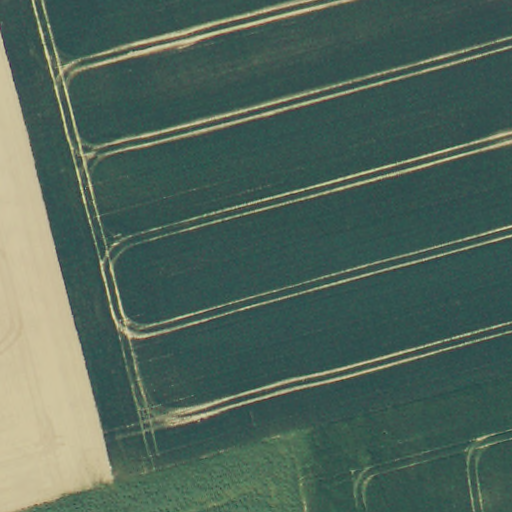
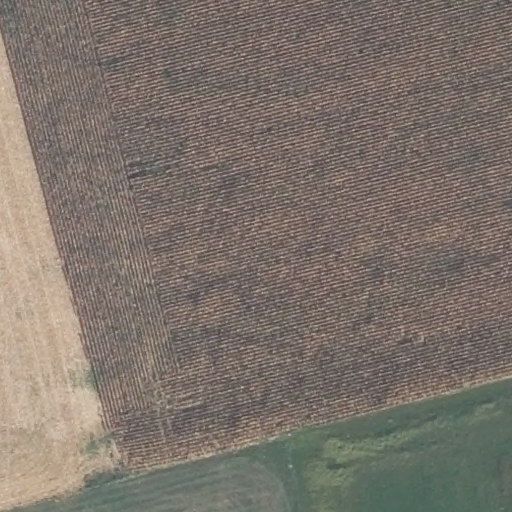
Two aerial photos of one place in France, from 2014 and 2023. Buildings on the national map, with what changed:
[]

